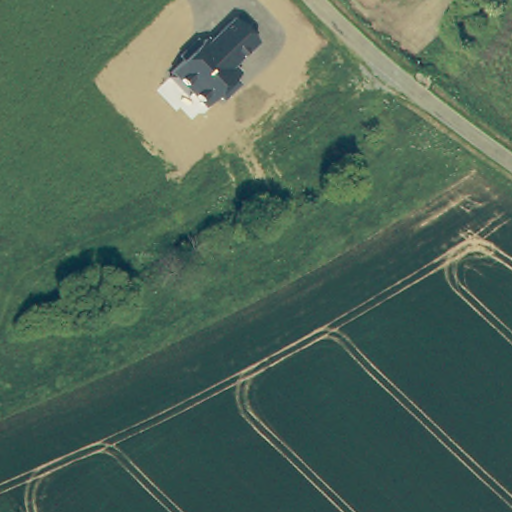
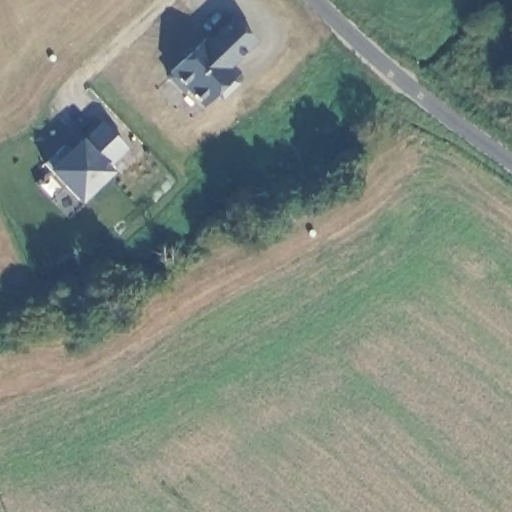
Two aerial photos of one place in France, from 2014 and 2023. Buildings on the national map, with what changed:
unchanged [(199,45),(208,36),(211,40),(233,18),(258,44),(232,66),(239,74),(234,80),(239,86),(222,102),(216,97),(202,109),(187,94),(185,96),(166,75),(171,73),(184,62),(179,56),(194,39),(199,45)]
new [(109,169),(115,173),(80,205),(47,167),(81,136),(85,140),(101,122),(127,150),(109,169)]

